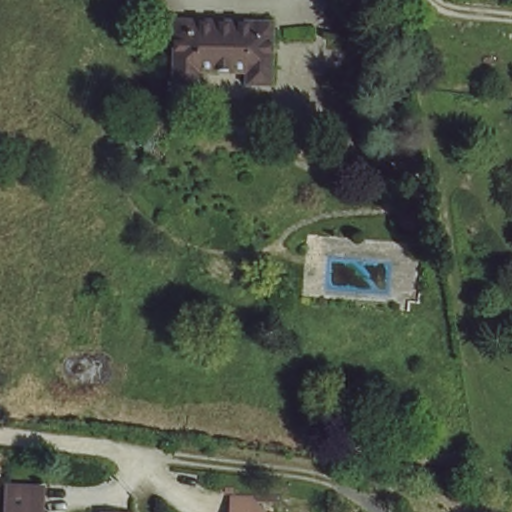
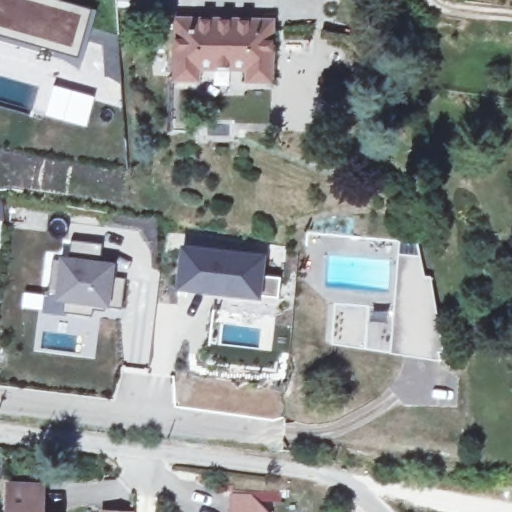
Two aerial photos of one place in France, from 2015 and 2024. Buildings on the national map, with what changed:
new [(96,11),(78,67),(65,59),(51,56),(54,48),(41,44),(38,51),(0,39),(0,0),(56,0),(90,10),(96,11)]
unchanged [(270,85),(247,85),(247,73),(197,72),(197,84),(173,84),(173,24),(210,24),(234,24),(271,25),(270,85)]
new [(52,84),(93,97),(85,125),(45,113),(52,84)]
unchanged [(415,227),(414,243),(362,238),(364,222),(415,227)]
new [(52,258),(58,258),(59,254),(69,256),(72,240),(101,244),(100,260),(114,262),(112,275),(125,277),(120,307),(110,304),(109,307),(105,306),(104,311),(92,309),(91,316),(42,312),(52,258)]
new [(178,244),(265,253),(262,273),(280,277),(276,303),(260,299),(174,289),(178,244)]
new [(389,351),(330,343),(333,302),(393,305),(397,254),(419,256),(423,276),(428,276),(443,350),(437,350),(438,359),(389,351)]
unchanged [(7,484),(42,485),(41,505),(36,505),(36,512),(6,512),(7,484)]
unchanged [(232,500),(253,502),(253,512),(231,512),(232,500)]
unchanged [(131,511),(131,512),(101,512),(102,510),(131,511)]

